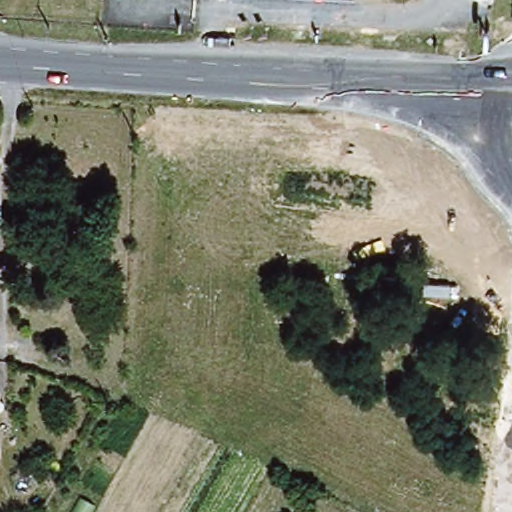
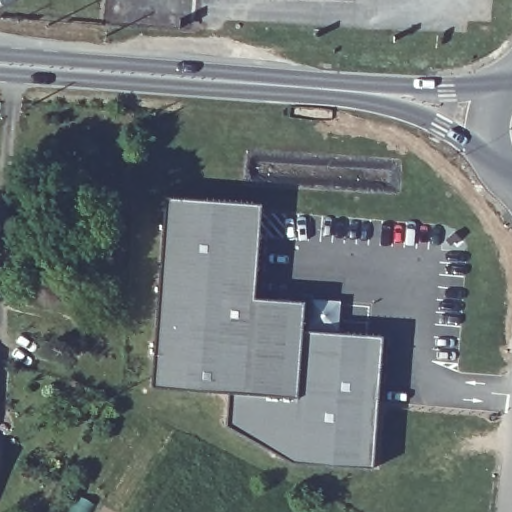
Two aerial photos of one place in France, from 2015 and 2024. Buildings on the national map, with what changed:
new [(164,204),(262,210),(255,304),(305,307),(303,336),(384,342),(374,475),(293,469),(226,435),(229,400),(152,395),(164,204)]

